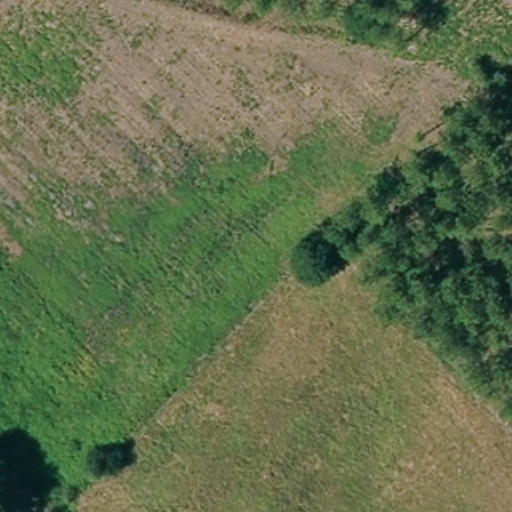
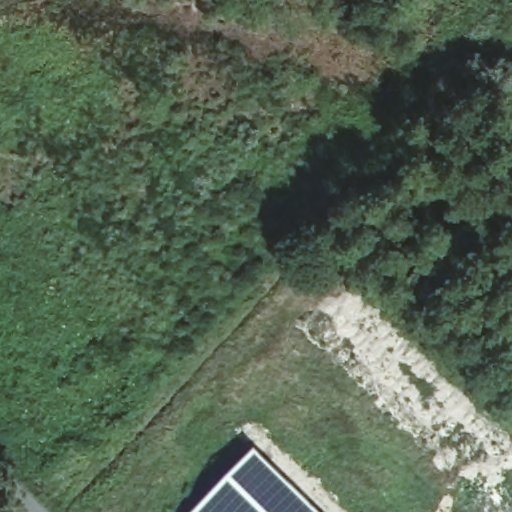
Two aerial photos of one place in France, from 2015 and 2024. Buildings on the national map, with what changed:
new [(318,512),(193,512),(254,449),(318,512)]

